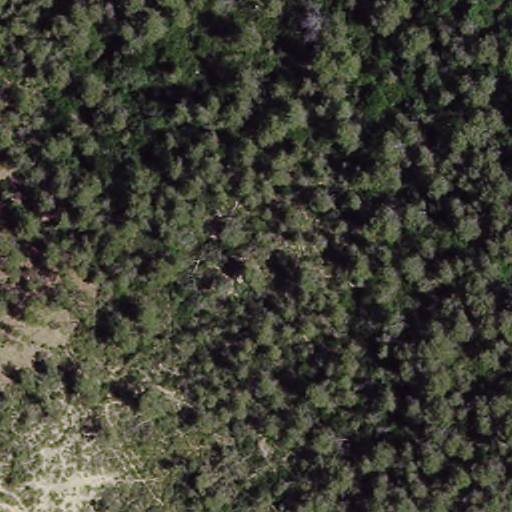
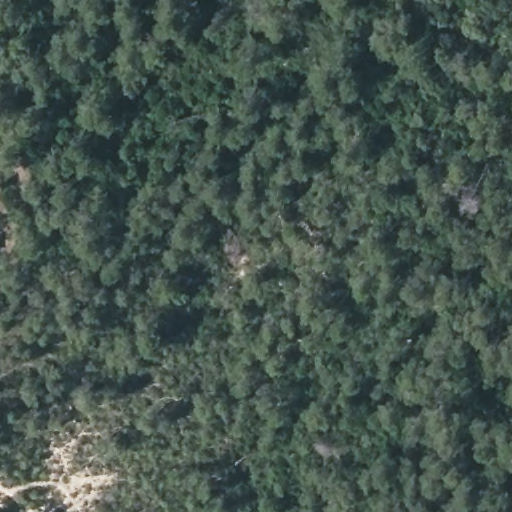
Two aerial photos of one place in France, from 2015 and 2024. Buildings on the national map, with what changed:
[]

